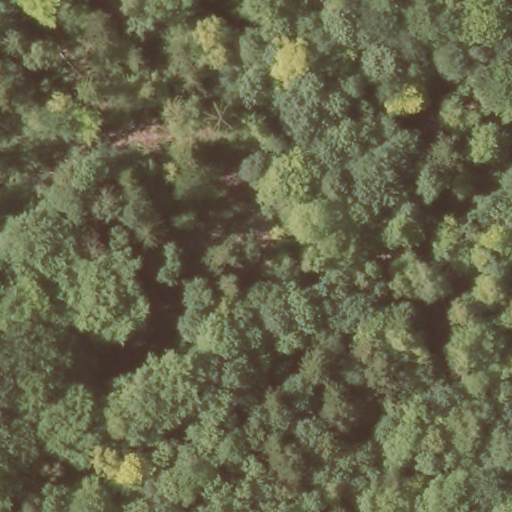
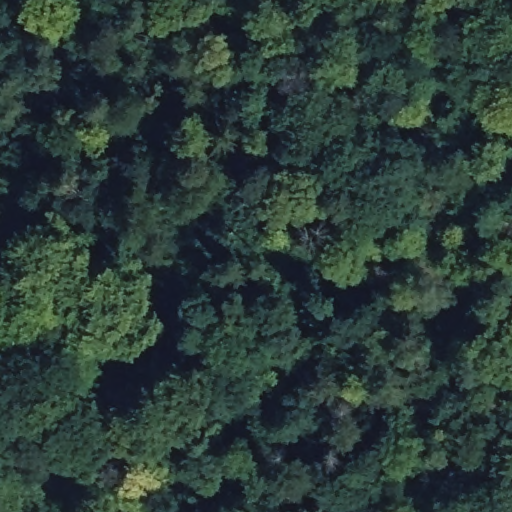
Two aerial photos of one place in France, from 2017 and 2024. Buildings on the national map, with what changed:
unchanged [(476,328),(435,356),(419,333),(460,306),(476,328)]

